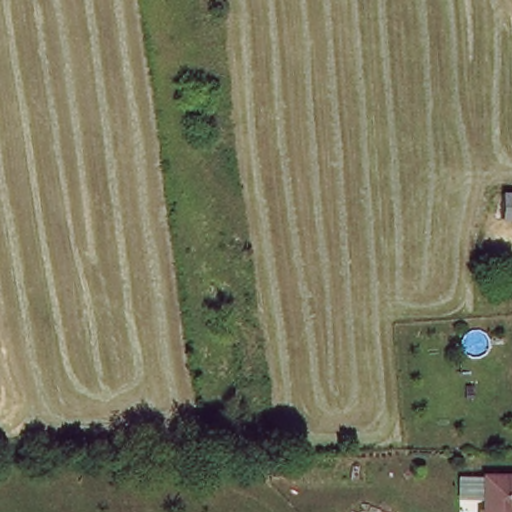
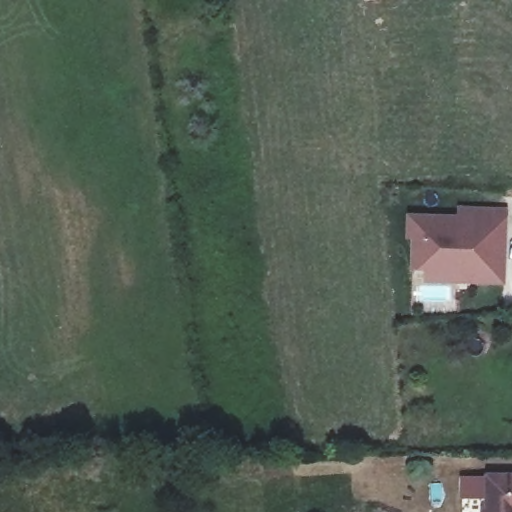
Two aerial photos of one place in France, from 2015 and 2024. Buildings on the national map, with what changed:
demolished [(512,187),(512,220),(501,220),(503,186),(512,187)]
new [(503,285),(424,282),(425,271),(409,270),(411,239),(405,239),(406,214),(458,215),(458,205),(508,208),(503,285)]
unchanged [(485,477),(512,478),(512,512),(485,512),(485,477)]

